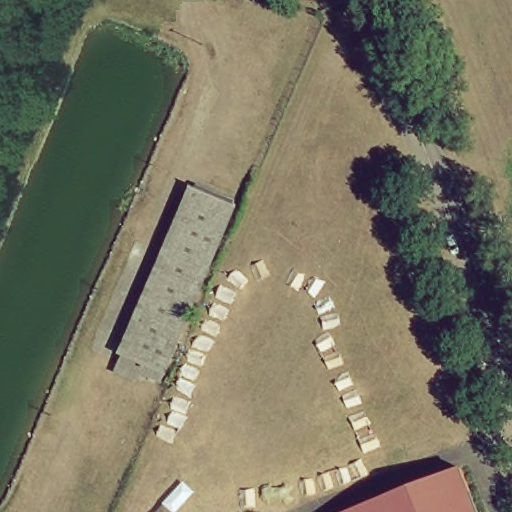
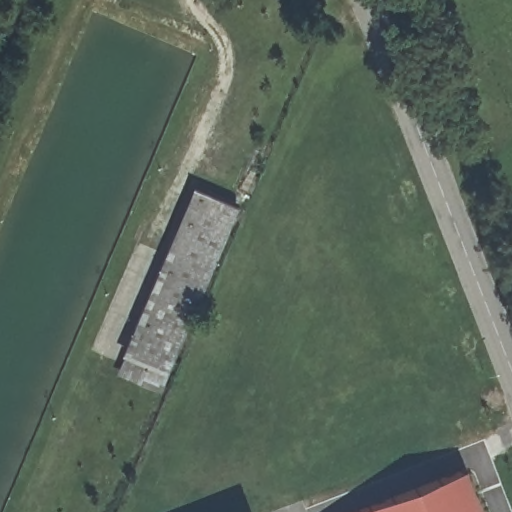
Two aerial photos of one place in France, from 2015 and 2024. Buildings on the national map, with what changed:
unchanged [(198,193),(236,210),(166,376),(127,360),(198,193)]
unchanged [(356,512),(468,468),(485,512),(356,512)]

